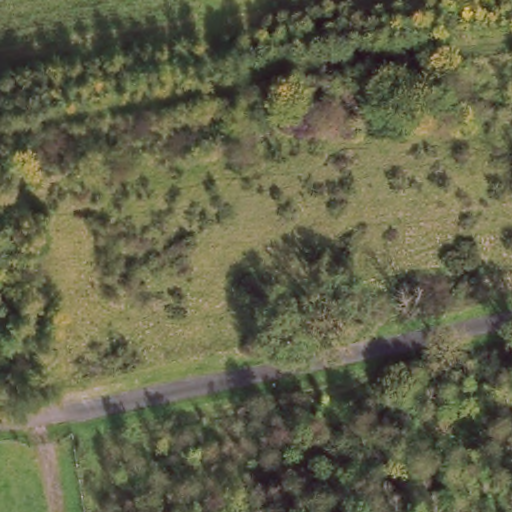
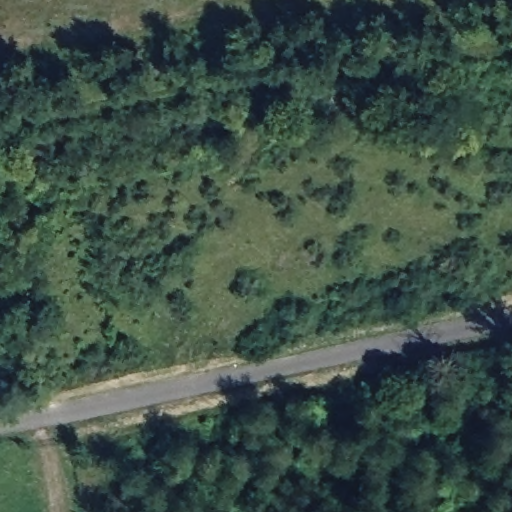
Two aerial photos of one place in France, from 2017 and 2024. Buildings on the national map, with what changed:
[]

